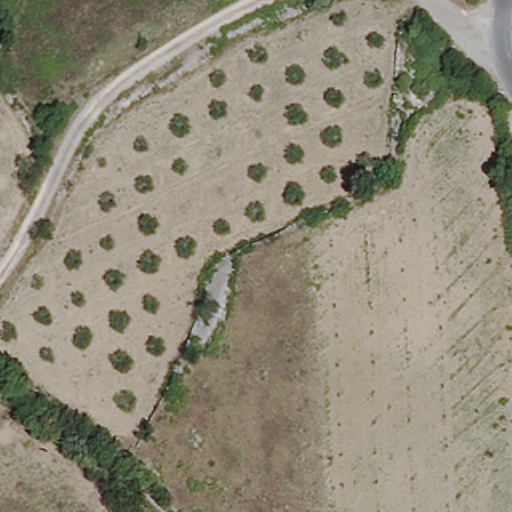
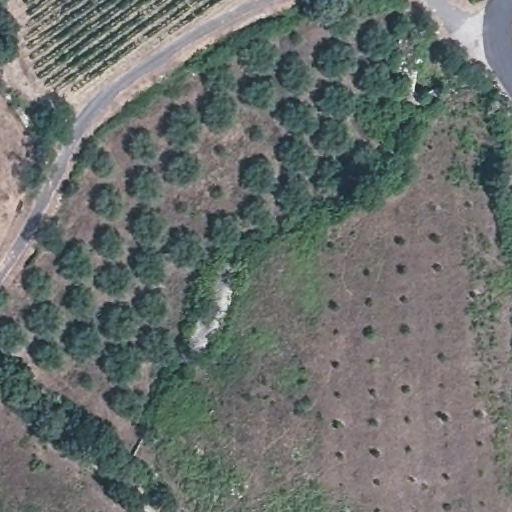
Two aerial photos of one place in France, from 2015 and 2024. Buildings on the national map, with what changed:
[]

